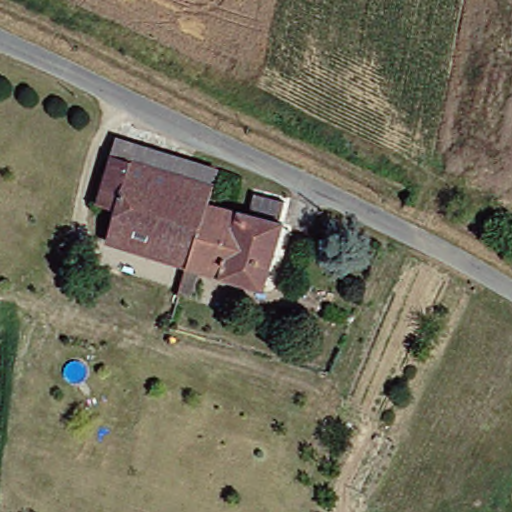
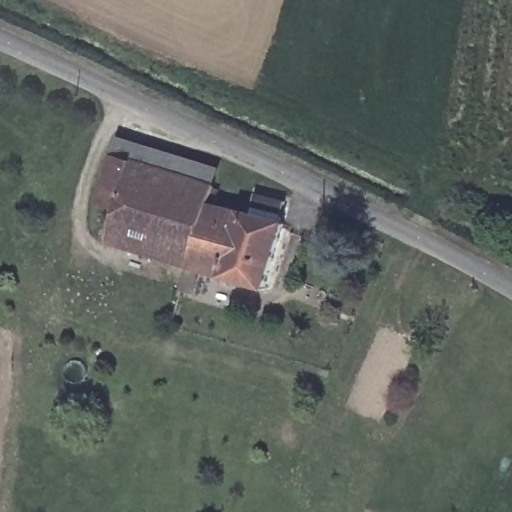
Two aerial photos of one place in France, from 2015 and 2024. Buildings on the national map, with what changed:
unchanged [(223,170),(220,189),(214,204),(245,210),(250,214),(257,197),(287,204),(281,221),(290,223),(270,290),(205,275),(196,301),(184,298),(191,270),(111,244),(120,212),(101,203),(114,158),(121,139),(223,170)]

